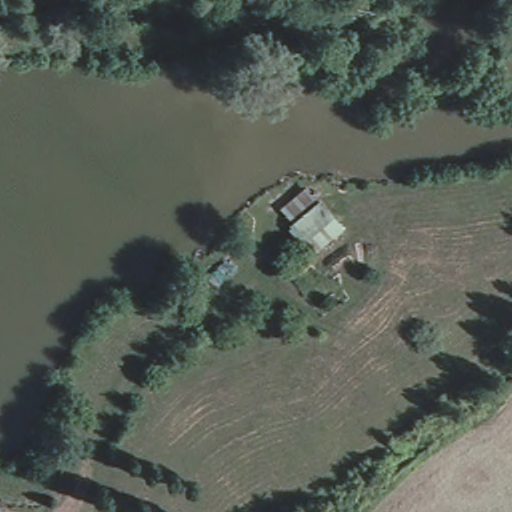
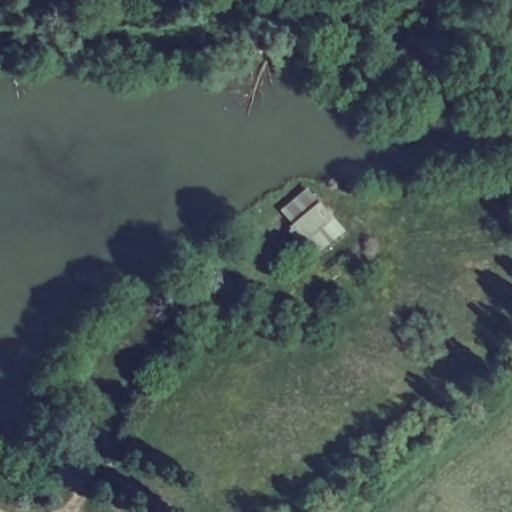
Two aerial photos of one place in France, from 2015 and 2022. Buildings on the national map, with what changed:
unchanged [(348,233),(315,264),(291,233),(323,202),(348,233)]

